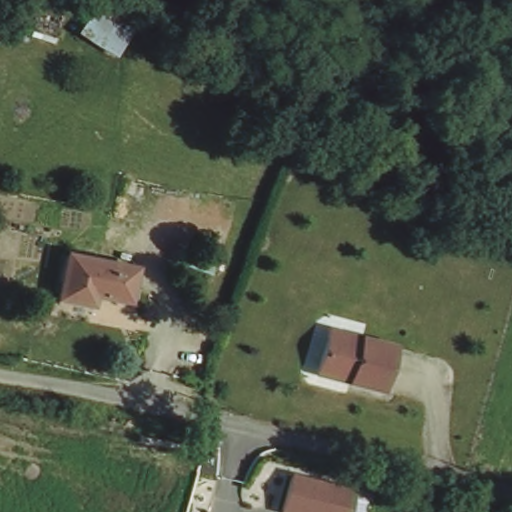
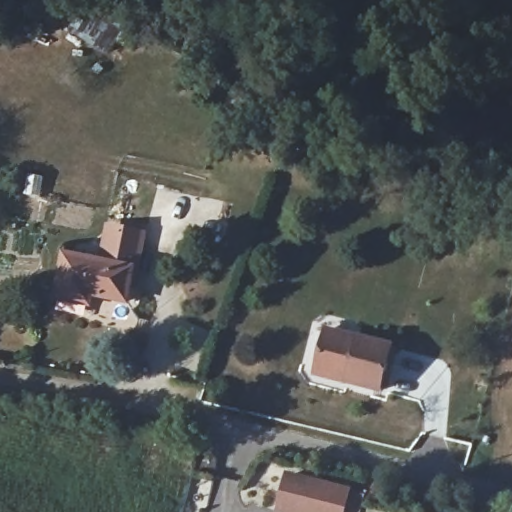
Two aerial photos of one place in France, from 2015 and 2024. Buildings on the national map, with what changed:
unchanged [(111,57),(70,32),(85,5),(124,31),(111,57)]
new [(106,224),(148,232),(136,288),(130,288),(133,265),(100,259),(106,224)]
unchanged [(128,296),(93,289),(91,304),(58,297),(66,252),(133,265),(128,296)]
unchanged [(391,349),(380,392),(348,384),(349,379),(316,371),(326,333),(391,349)]
unchanged [(284,512),(280,511),(290,477),(350,493),(367,497),(363,512),(284,512)]

